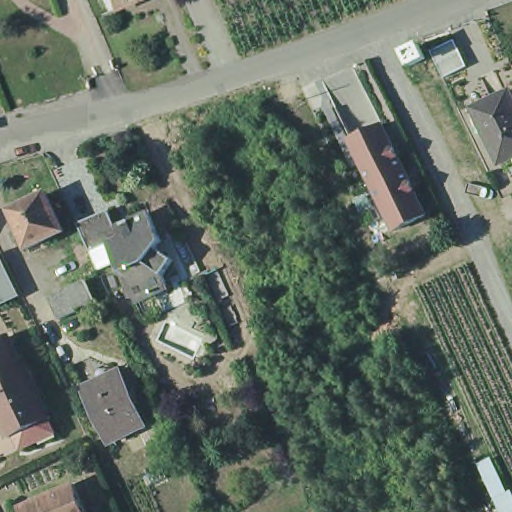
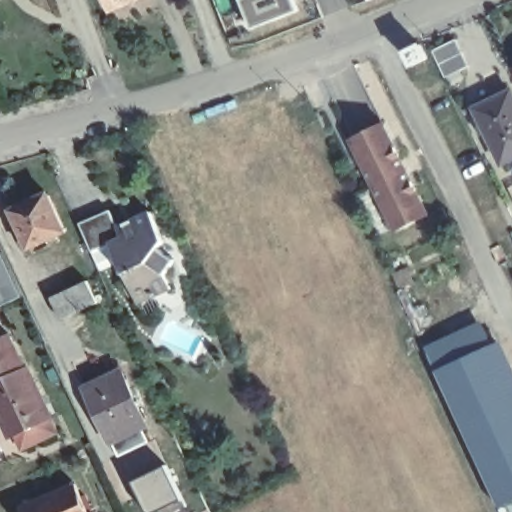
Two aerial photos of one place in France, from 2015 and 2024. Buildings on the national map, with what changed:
unchanged [(122,0),(113,3),(112,0),(122,0)]
new [(245,31),(234,0),(289,0),(294,13),(245,31)]
new [(452,40),(467,69),(444,80),(430,51),(452,40)]
unchanged [(478,106),(512,89),(512,160),(505,163),(478,106)]
unchanged [(376,179),(354,133),(356,132),(386,117),(409,163),(432,208),(401,224),(399,224),(376,179)]
unchanged [(27,219),(20,204),(56,187),(74,225),(38,242),(33,232),(25,236),(19,223),(27,219)]
unchanged [(153,210),(166,239),(160,247),(178,258),(166,272),(173,287),(141,301),(128,272),(126,272),(120,260),(110,243),(112,242),(97,215),(111,208),(119,226),(153,210)]
unchanged [(81,222),(97,215),(110,243),(118,260),(103,267),(95,250),(81,222)]
unchanged [(0,307),(0,252),(6,248),(28,292),(0,307)]
unchanged [(94,305),(56,321),(47,299),(84,283),(94,305)]
unchanged [(21,428),(15,431),(0,398),(0,333),(14,326),(30,360),(33,359),(58,411),(55,411),(62,426),(28,442),(21,428)]
new [(493,344),(437,370),(428,353),(484,327),(493,344)]
new [(512,363),(512,503),(498,509),(434,371),(437,370),(493,344),(502,340),(512,363)]
unchanged [(149,420),(111,438),(86,382),(123,364),(149,420)]
new [(158,468),(175,502),(156,512),(139,512),(126,485),(158,468)]
unchanged [(96,512),(30,512),(27,505),(82,481),(96,512)]
demolished [(493,496),(512,487),(512,512),(500,512),(493,496)]

